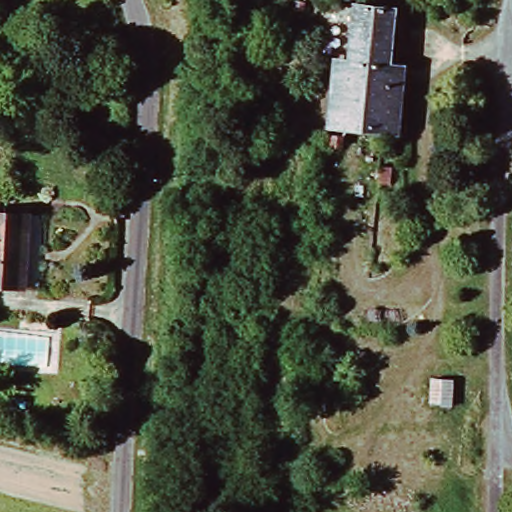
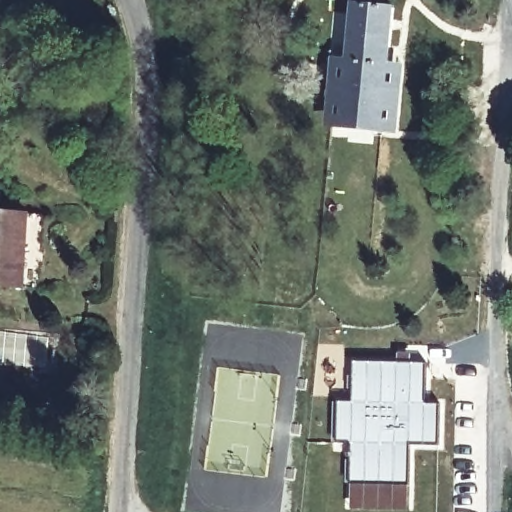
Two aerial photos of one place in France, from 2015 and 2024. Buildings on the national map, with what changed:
unchanged [(110,4),(120,5),(117,15),(107,14),(110,4)]
unchanged [(358,4),(402,8),(397,61),(390,128),(349,126),(354,60),(358,4)]
unchanged [(337,59),(342,59),(354,60),(349,126),(335,125),(332,125),(336,80),(337,59)]
unchanged [(390,128),(397,61),(412,63),(405,129),(390,128)]
unchanged [(30,273),(29,285),(0,282),(0,214),(37,218),(30,273)]
new [(352,400),(352,360),(397,361),(397,349),(412,349),(412,360),(425,361),(425,402),(440,402),(439,446),(410,446),(409,484),(350,482),(350,441),(335,441),(335,400),(352,400)]

